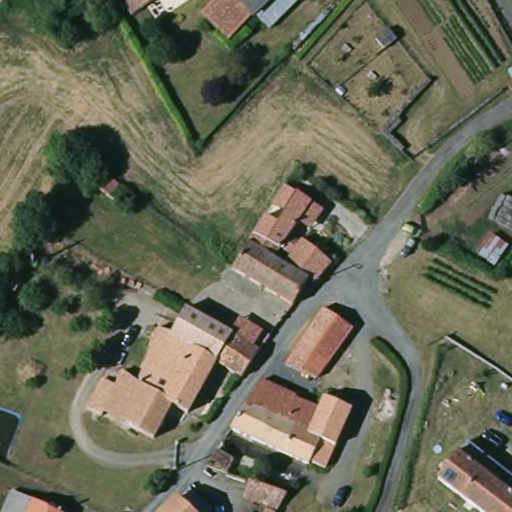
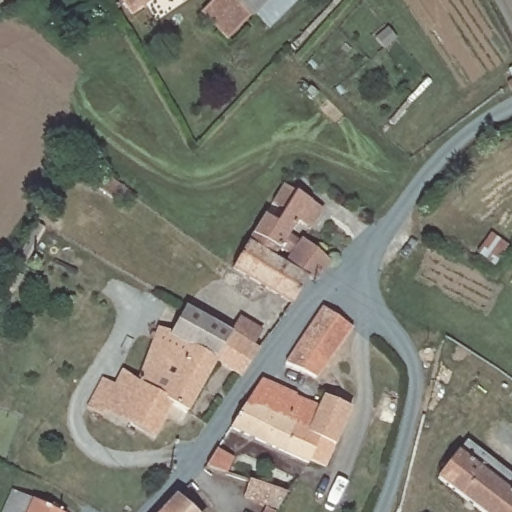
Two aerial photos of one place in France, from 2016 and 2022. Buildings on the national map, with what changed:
unchanged [(63,49),(45,32),(61,21),(84,11),(79,0),(104,0),(114,18),(98,32),(63,49)]
unchanged [(122,0),(155,0),(132,16),(122,0)]
unchanged [(256,15),(252,19),(228,41),(202,12),(213,0),(299,0),(269,30),(256,15)]
unchanged [(124,192),(128,195),(129,195),(130,196),(132,197),(138,202),(134,209),(130,207),(127,211),(92,188),(100,176),(102,177),(103,178),(107,181),(108,182),(109,182),(112,184),(119,188),(123,191),(124,192)]
unchanged [(235,269),(237,266),(240,261),(240,260),(242,257),(243,256),(244,255),(246,250),(247,249),(248,248),(249,247),(251,242),(252,241),(252,240),(253,240),(255,237),(257,232),(269,214),(282,222),(289,210),(276,202),(278,200),(285,189),(288,184),(316,201),(314,204),(283,250),(280,254),(279,255),(279,256),(276,259),(281,262),(285,265),(288,267),(292,270),(295,272),(296,273),(301,276),(302,277),(303,278),(306,280),(307,281),(305,284),(304,285),(304,286),(302,289),(301,290),(295,300),(292,305),(292,306),(247,279),(234,270),(235,269)]
unchanged [(331,265),(318,279),(314,284),(308,279),(285,259),(304,240),(310,245),(314,248),(317,251),(318,252),(324,258),(328,261),(332,264),(331,265)]
unchanged [(304,341),(310,333),(310,332),(311,331),(312,330),(316,324),(321,316),(322,315),(322,314),(327,308),(332,300),(358,321),(321,373),(291,360),(289,359),(288,359),(287,358),(286,357),(285,357),(283,356),(280,355),(281,354),(283,351),(286,347),(288,344),(288,343),(291,340),(293,337),(293,336),(294,335),(296,337),(300,339),(300,340),(303,342),(304,341)]
unchanged [(202,315),(205,317),(206,317),(206,318),(210,320),(215,323),(216,323),(223,327),(226,329),(243,339),(247,341),(256,346),(257,347),(259,347),(241,375),(215,359),(188,410),(173,401),(154,435),(88,406),(103,377),(114,382),(122,368),(137,377),(154,337),(170,333),(186,306),(202,315)]
unchanged [(248,404),(250,400),(252,398),(254,394),(257,390),(257,389),(258,388),(258,387),(261,383),(262,381),(264,377),(267,373),(268,372),(268,371),(324,398),(324,399),(314,423),(310,432),(303,429),(295,425),(271,415),(247,405),(248,404)]
unchanged [(271,415),(295,425),(303,429),(310,432),(314,423),(324,399),(324,398),(345,407),(347,403),(353,406),(325,467),(315,478),(307,475),(300,458),(298,461),(231,430),(235,424),(237,422),(237,421),(241,415),(246,407),(247,405),(271,415)]
unchanged [(498,420),(512,407),(512,429),(509,432),(498,420)]
unchanged [(207,468),(209,466),(211,462),(212,461),(214,458),(215,457),(215,456),(216,455),(217,453),(218,452),(234,460),(229,476),(225,475),(222,474),(219,473),(218,473),(214,471),(213,471),(212,471),(208,470),(207,469),(207,468)]
unchanged [(455,454),(475,469),(484,457),(512,478),(512,493),(511,496),(512,497),(512,512),(478,512),(436,480),(455,454)]
unchanged [(263,507),(244,499),(251,480),(287,494),(275,512),(261,512),(263,507)]
unchanged [(191,485),(213,508),(209,512),(164,512),(191,485)]
unchanged [(3,507),(4,505),(9,493),(24,499),(29,501),(30,502),(32,503),(35,504),(40,506),(46,509),(49,511),(52,512),(0,512),(3,507)]
unchanged [(244,511),(246,512),(243,512),(244,511)]

